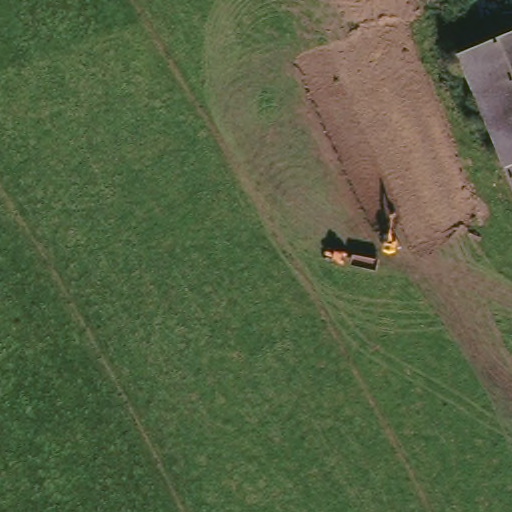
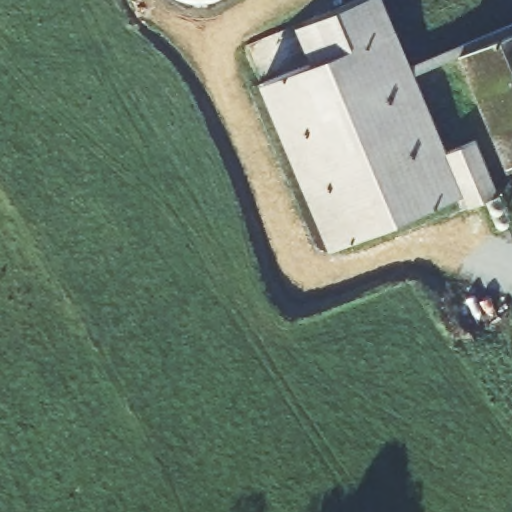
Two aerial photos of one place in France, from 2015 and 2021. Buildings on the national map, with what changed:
new [(413,74),(446,154),(476,142),(498,196),(468,209),(462,196),(328,252),(259,85),(313,63),(296,27),(358,0),(384,0),(410,64),(413,74)]
new [(463,50),(413,74),(410,64),(512,23),(512,30),(476,45),(463,50)]
unchanged [(463,50),(476,45),(512,30),(512,173),(491,122),(463,50)]
new [(489,205),(489,203),(491,202),(491,201),(493,200),(497,198),(501,200),(503,205),(509,219),(509,221),(508,224),(504,225),(502,226),(498,226),(496,221),(489,205)]

